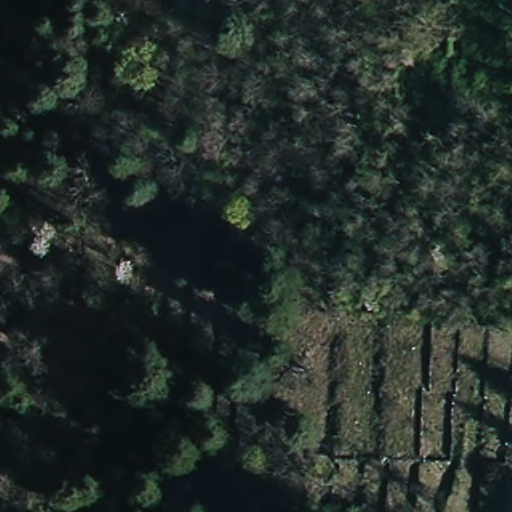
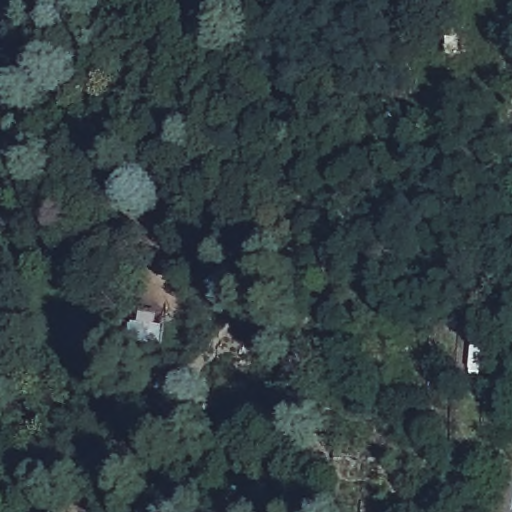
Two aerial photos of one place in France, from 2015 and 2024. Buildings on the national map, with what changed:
[]

